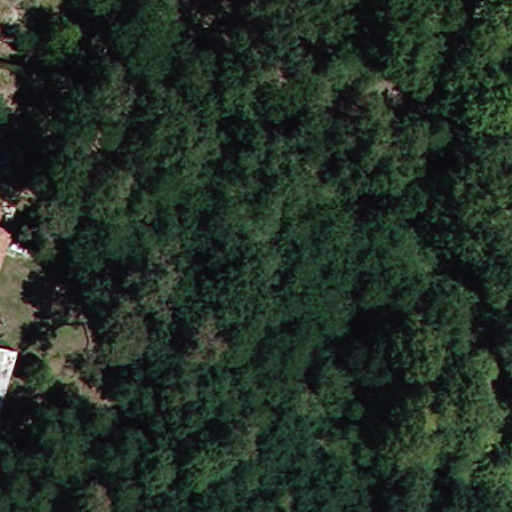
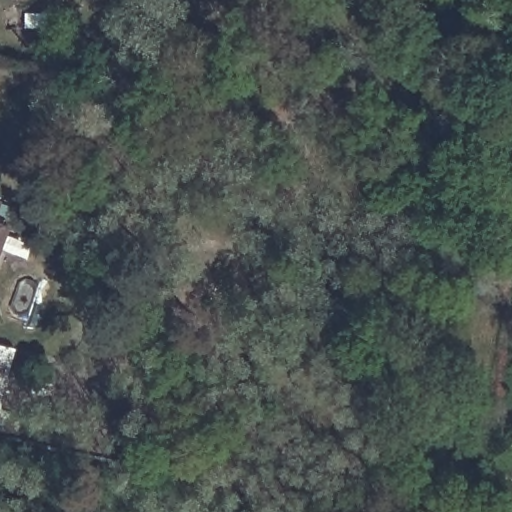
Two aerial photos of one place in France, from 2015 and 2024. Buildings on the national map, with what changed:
unchanged [(9,212),(32,218),(27,244),(15,242),(7,274),(0,273),(0,187),(15,190),(9,212)]

